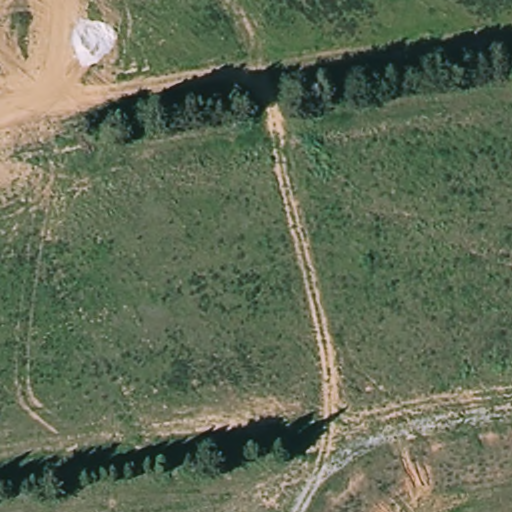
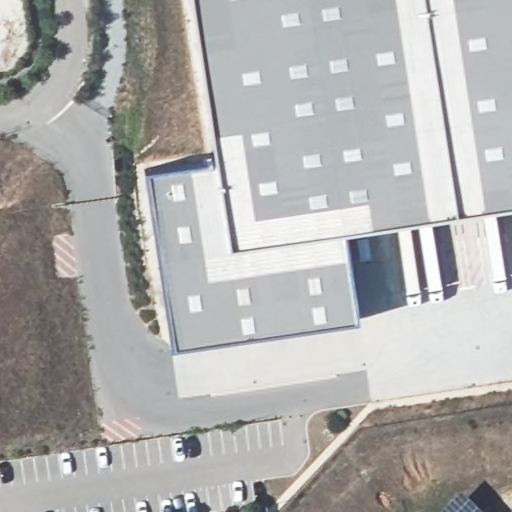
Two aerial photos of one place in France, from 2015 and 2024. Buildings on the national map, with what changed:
new [(359,318),(170,348),(143,171),(215,158),(191,0),(512,0),(512,201),(345,228),(359,318)]

